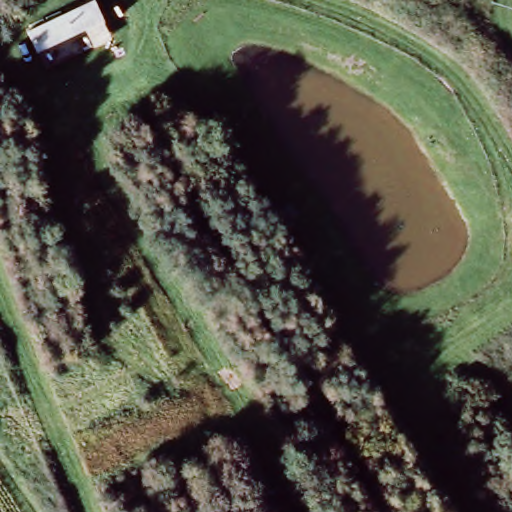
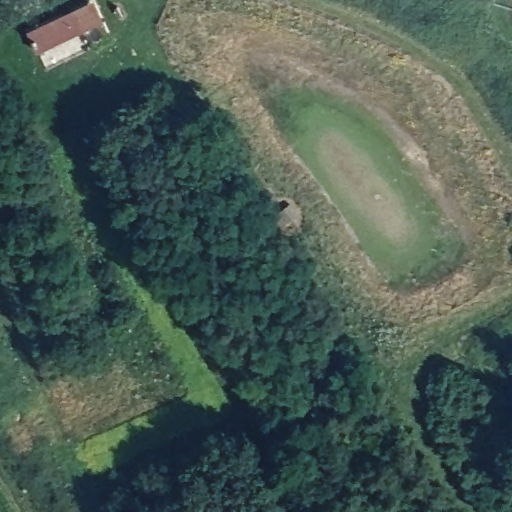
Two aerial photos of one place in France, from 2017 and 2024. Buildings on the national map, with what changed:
unchanged [(93,0),(104,25),(33,56),(25,34),(93,0)]

